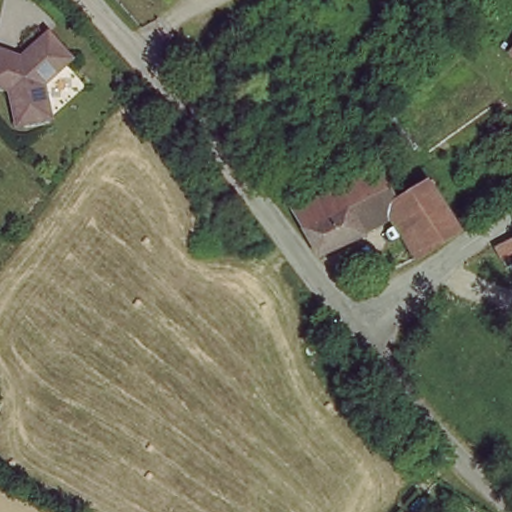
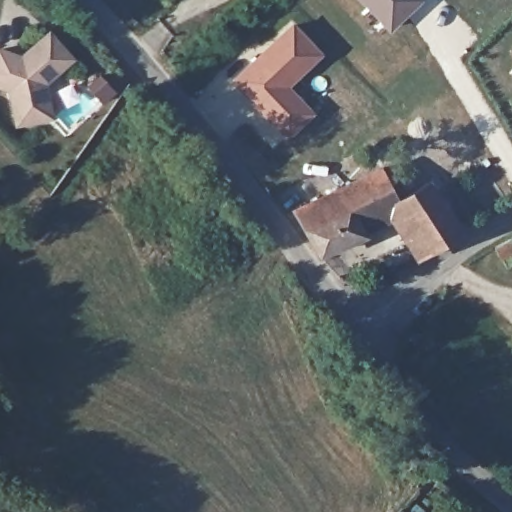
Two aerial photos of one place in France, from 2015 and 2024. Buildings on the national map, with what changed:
new [(358,0),(417,0),(388,30),(358,0)]
new [(292,21),(324,54),(291,86),(313,110),(286,139),(229,80),(292,21)]
unchanged [(59,51),(35,74),(39,111),(4,119),(0,97),(0,51),(12,55),(40,24),(59,51)]
unchanged [(512,48),(512,52),(510,50),(512,48)]
unchanged [(396,201),(402,216),(363,231),(344,189),(383,172),(396,201)]
unchanged [(457,246),(423,258),(402,216),(396,201),(435,186),(465,242),(457,246)]
unchanged [(297,209),(344,189),(363,231),(315,250),(297,209)]
unchanged [(506,239),(512,236),(512,249),(506,239)]

